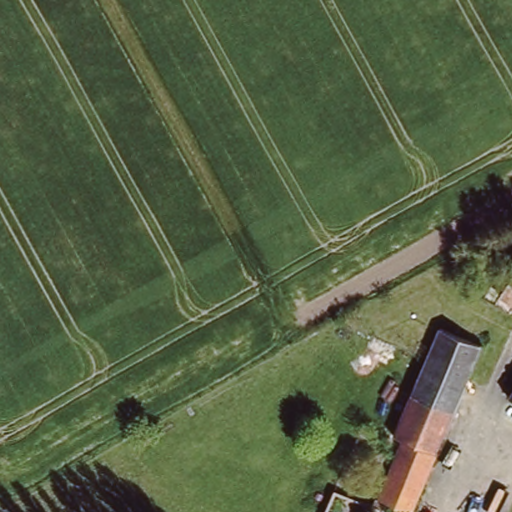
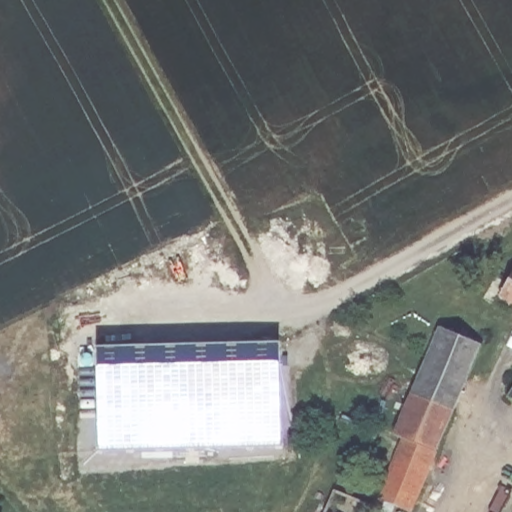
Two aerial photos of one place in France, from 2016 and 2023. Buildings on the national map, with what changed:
unchanged [(512,269),(512,306),(497,297),(512,269)]
unchanged [(480,355),(415,512),(397,512),(396,511),(396,512),(380,512),(370,508),(397,443),(387,438),(437,335),(480,355)]
new [(278,344),(281,445),(100,449),(96,348),(278,344)]
unchanged [(512,389),(512,402),(507,398),(512,389)]
unchanged [(317,512),(309,512),(310,509),(317,512)]

